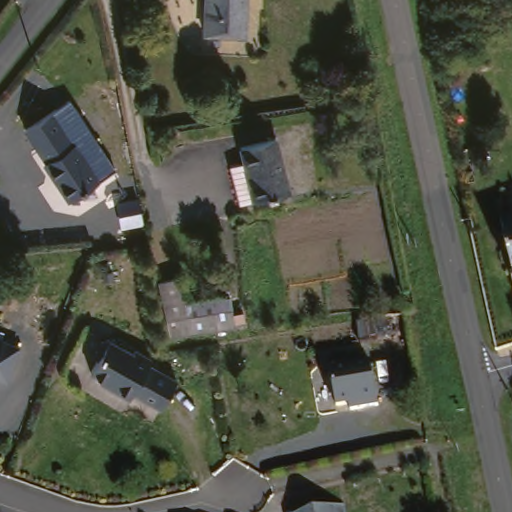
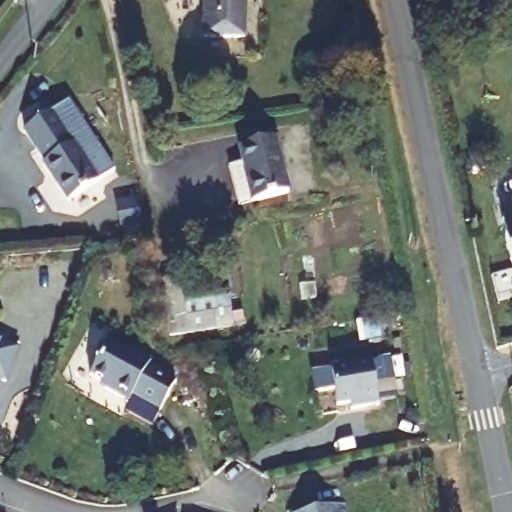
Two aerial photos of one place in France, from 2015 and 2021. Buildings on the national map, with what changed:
unchanged [(247,37),(205,37),(205,0),(247,0),(247,37)]
unchanged [(22,127),(64,97),(115,172),(99,182),(69,203),(44,167),(47,164),(35,145),(22,127)]
unchanged [(244,167),(240,146),(276,140),(287,197),(251,204),(238,206),(231,170),(244,167)]
unchanged [(510,282),(502,246),(498,229),(512,226),(512,282),(510,282)]
unchanged [(165,345),(154,283),(179,280),(183,303),(227,296),(235,333),(165,345)]
unchanged [(0,338),(3,340),(2,341),(21,347),(7,385),(0,382),(0,338)]
unchanged [(140,397),(137,402),(112,393),(114,390),(96,382),(101,368),(98,362),(102,350),(109,347),(135,357),(136,353),(154,360),(151,367),(181,378),(170,408),(140,397)]
unchanged [(381,407),(352,411),(352,405),(338,407),(332,371),(373,363),(381,407)]
unchanged [(343,512),(313,512),(342,507),(343,512)]

